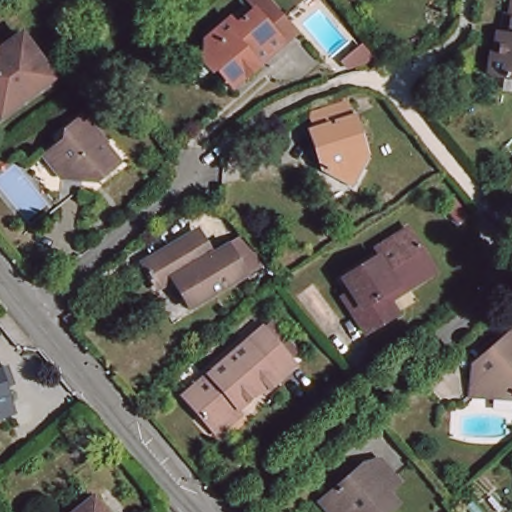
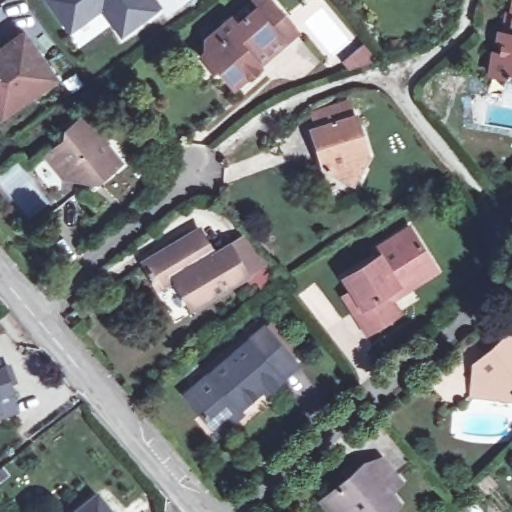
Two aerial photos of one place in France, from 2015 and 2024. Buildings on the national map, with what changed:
new [(162,5),(121,36),(101,9),(69,31),(46,0),(158,0),(162,5)]
unchanged [(231,82),(222,71),(216,76),(205,61),(210,56),(210,43),(205,37),(215,28),(221,35),(237,22),(242,29),(273,3),(303,37),(290,48),(287,44),(260,66),(263,70),(248,82),(238,91),(231,82)]
unchanged [(497,68),(499,47),(505,49),(510,28),(512,28),(512,71),(497,68)]
unchanged [(0,55),(2,59),(27,41),(31,46),(56,82),(19,109),(6,119),(0,110),(0,55)]
unchanged [(511,82),(512,80),(512,83),(511,82)]
unchanged [(372,159),(358,188),(330,174),(317,135),(322,133),(318,121),(353,110),(357,122),(360,121),(372,159)]
unchanged [(70,211),(71,182),(55,161),(75,146),(74,136),(93,121),(128,165),(111,180),(104,172),(91,184),(91,195),(70,211)]
unchanged [(351,292),(342,278),(380,255),(376,248),(388,240),(407,228),(436,272),(410,289),(391,301),(399,313),(365,334),(352,313),(342,298),(351,292)]
unchanged [(261,269),(192,311),(175,283),(158,292),(153,285),(150,287),(145,278),(148,276),(143,268),(187,243),(199,235),(213,261),(245,242),(261,269)]
unchanged [(224,442),(219,435),(189,401),(268,333),(300,371),(271,397),(267,394),(242,415),(247,421),(224,442)]
unchanged [(495,402),(495,404),(482,402),(471,389),(485,378),(474,367),(500,345),(512,336),(512,403),(495,402)]
unchanged [(12,371),(17,389),(10,392),(19,419),(2,425),(0,426),(0,362),(4,374),(12,371)]
unchanged [(369,467),(373,472),(385,462),(403,483),(392,493),(401,505),(393,512),(336,512),(327,502),(369,467)]
unchanged [(105,512),(75,512),(93,498),(105,512)]

